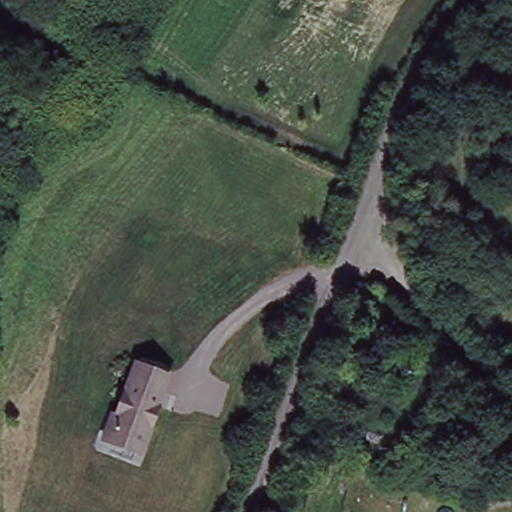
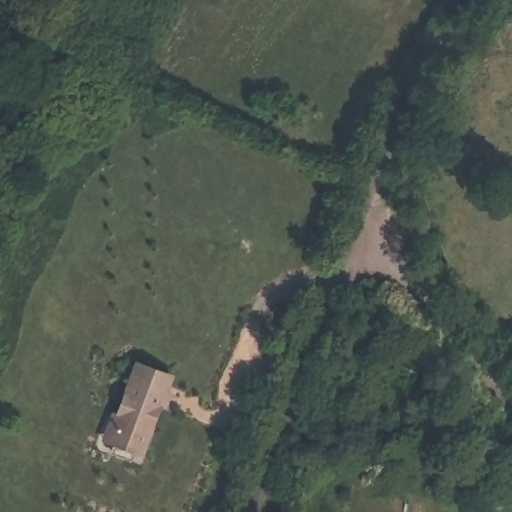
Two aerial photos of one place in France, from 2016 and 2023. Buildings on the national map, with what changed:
unchanged [(141,456),(100,441),(131,362),(174,375),(141,456)]

